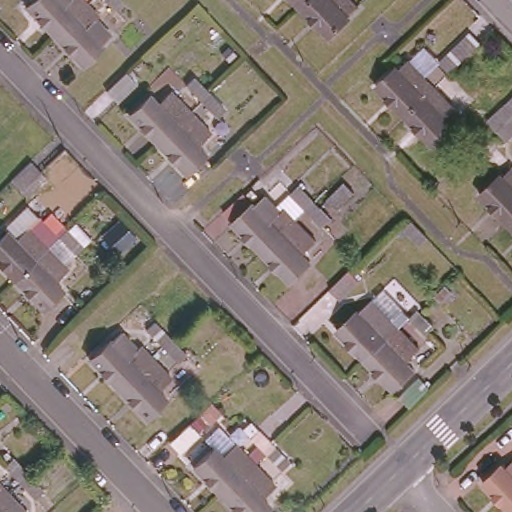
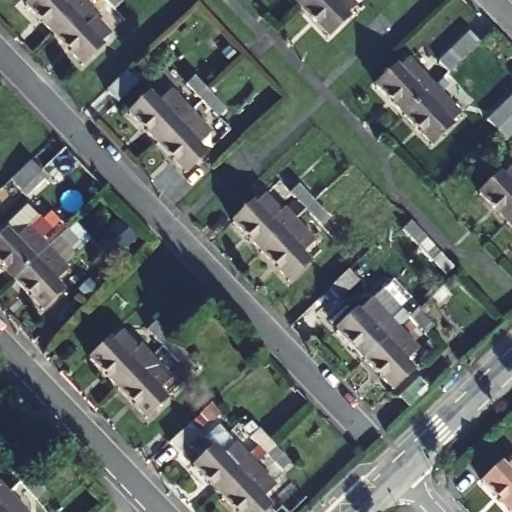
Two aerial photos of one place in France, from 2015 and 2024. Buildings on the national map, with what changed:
unchanged [(26,4),(31,0),(84,0),(87,2),(55,34),(26,4)]
unchanged [(118,5),(114,0),(122,0),(118,5)]
unchanged [(300,4),(297,0),(305,0),(300,4)]
unchanged [(305,0),(355,0),(358,2),(327,32),(300,4),(305,0)]
unchanged [(87,2),(112,32),(104,41),(106,44),(83,64),(55,34),(87,2)]
unchanged [(401,60),(428,88),(400,116),(371,87),(401,60)]
unchanged [(116,96),(108,87),(128,67),(136,77),(116,96)]
unchanged [(216,111),(202,96),(185,78),(195,70),(211,88),(225,101),(216,111)]
unchanged [(428,88),(455,116),(428,145),(400,116),(428,88)]
unchanged [(131,116),(151,96),(158,102),(170,90),(191,113),(157,145),(131,116)]
unchanged [(510,134),(501,124),(490,113),(512,93),(512,132),(510,134)]
unchanged [(191,113),(210,131),(196,143),(205,152),(182,172),(157,145),(191,113)]
unchanged [(33,159),(44,170),(25,187),(14,177),(33,159)]
unchanged [(512,167),(512,218),(508,221),(481,194),(512,167)]
unchanged [(318,220),(305,205),(287,186),(297,178),(315,195),(329,211),(318,220)]
unchanged [(251,200),(260,211),(269,203),(282,215),(286,211),(300,225),(265,257),(230,220),(251,200)]
unchanged [(57,239),(41,221),(50,211),(67,229),(82,245),(70,253),(57,239)]
unchanged [(512,218),(512,225),(508,221),(512,218)]
unchanged [(405,230),(413,222),(428,237),(420,246),(405,230)]
unchanged [(300,225),(319,245),(307,258),(315,266),(295,286),(265,257),(300,225)]
unchanged [(0,264),(0,239),(8,231),(16,238),(28,227),(48,247),(15,280),(0,264)]
unchanged [(65,267),(51,280),(60,288),(41,308),(15,280),(48,247),(65,267)]
unchanged [(340,300),(330,288),(350,268),(360,281),(340,300)]
unchanged [(361,367),(333,339),(356,317),(358,318),(370,310),(382,298),(400,317),(406,323),(394,335),(361,367)]
unchanged [(421,340),(406,323),(413,316),(428,333),(421,340)]
unchanged [(160,346),(143,330),(153,320),(170,336),(185,353),(175,362),(160,346)]
unchanged [(118,386),(92,359),(119,334),(131,346),(136,341),(150,355),(118,386)]
unchanged [(394,335),(419,361),(387,393),(361,367),(394,335)]
unchanged [(171,377),(157,390),(165,398),(146,415),(118,386),(150,355),(171,377)]
unchanged [(190,423),(198,434),(180,454),(169,443),(190,423)]
unchanged [(280,470),(264,455),(250,439),(258,430),(273,446),(288,462),(280,470)]
unchanged [(213,450),(221,456),(235,443),(255,463),(221,496),(194,468),(213,450)]
unchanged [(17,483),(0,466),(0,464),(7,457),(25,475),(41,491),(31,498),(17,483)]
unchanged [(506,512),(480,485),(508,458),(512,462),(512,508),(508,512),(506,512)]
unchanged [(276,485),(261,499),(267,506),(261,512),(236,512),(221,496),(255,463),(276,485)]
unchanged [(0,501),(0,499),(1,500),(0,501)]
unchanged [(13,512),(0,512),(0,501),(1,500),(13,512)]
unchanged [(508,512),(512,508),(512,512),(508,512)]

